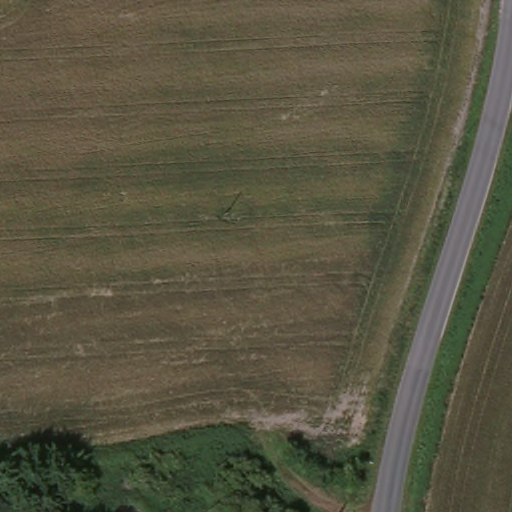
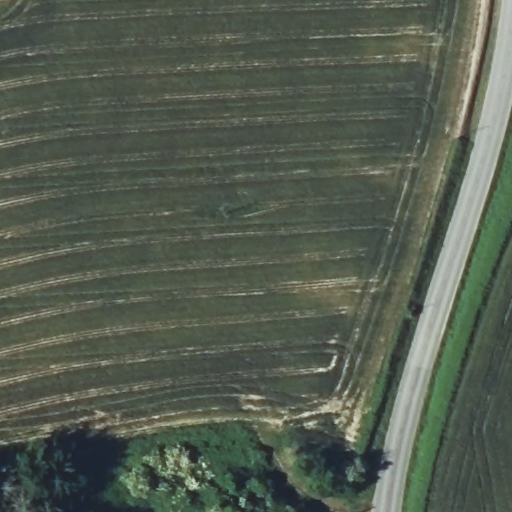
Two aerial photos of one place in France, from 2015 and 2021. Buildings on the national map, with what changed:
[]

